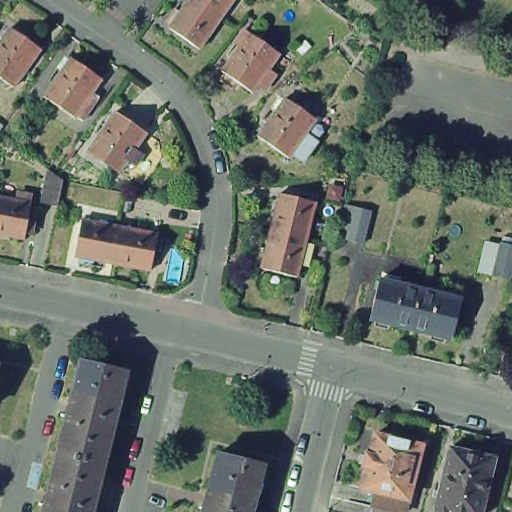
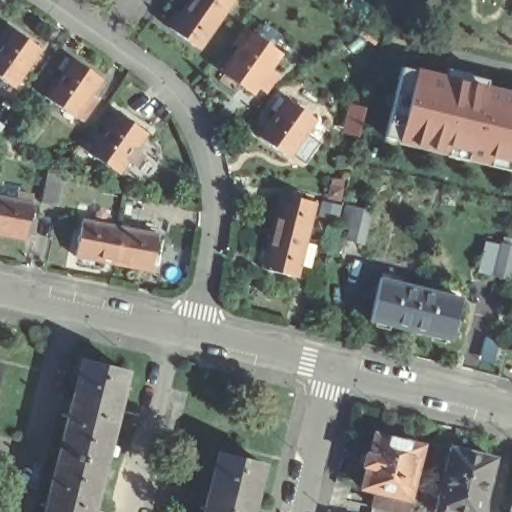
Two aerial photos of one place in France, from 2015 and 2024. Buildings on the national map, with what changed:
unchanged [(195,49),(165,28),(184,0),(191,0),(217,18),(195,49)]
unchanged [(229,0),(217,18),(191,0),(229,0)]
unchanged [(10,90),(0,83),(0,35),(5,28),(37,51),(10,90)]
unchanged [(220,80),(225,73),(222,71),(238,47),(234,44),(242,32),(247,36),(250,32),(280,54),(270,69),(277,75),(268,87),(262,82),(253,93),(238,82),(233,90),(220,80)]
unchanged [(98,81),(70,120),(40,98),(67,59),(98,81)]
new [(512,91),(512,171),(398,142),(415,67),(512,91)]
unchanged [(298,167),(287,159),(283,163),(252,142),(280,102),(310,124),(301,138),(312,146),(298,167)]
unchanged [(130,167),(123,162),(114,175),(82,152),(110,113),(142,135),(131,151),(137,156),(130,167)]
unchanged [(50,180),(58,186),(53,212),(35,208),(43,175),(50,180)]
unchanged [(275,198),(311,207),(301,245),(287,241),(265,236),(275,198)]
unchanged [(22,236),(20,246),(0,241),(0,203),(27,209),(25,224),(30,225),(28,237),(22,236)]
unchanged [(367,248),(350,244),(353,233),(345,231),(350,210),(358,212),(375,216),(367,248)]
unchanged [(107,270),(68,262),(75,226),(115,232),(107,270)]
unchanged [(152,240),(145,277),(107,270),(115,232),(152,240)]
unchanged [(287,241),(301,245),(292,283),(255,274),(265,236),(287,241)]
unchanged [(507,247),(498,280),(482,276),(490,244),(507,247)]
unchanged [(375,285),(415,294),(405,336),(365,326),(375,285)]
unchanged [(415,294),(455,304),(445,346),(405,336),(415,294)]
unchanged [(121,372),(97,464),(53,453),(77,360),(121,372)]
unchanged [(367,506),(370,492),(356,488),(361,468),(357,467),(360,453),(365,454),(370,434),(417,447),(400,512),(365,512),(367,506)]
unchanged [(474,457),(473,461),(489,464),(477,512),(430,512),(445,453),(446,453),(447,451),(474,457)]
unchanged [(97,464),(85,512),(38,512),(53,453),(97,464)]
unchanged [(212,454),(257,465),(245,512),(197,512),(212,454)]

